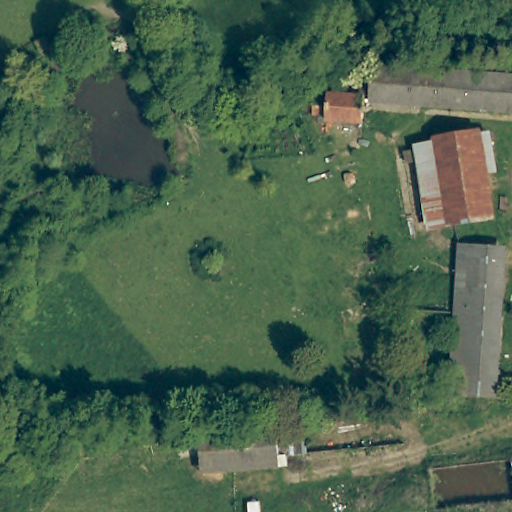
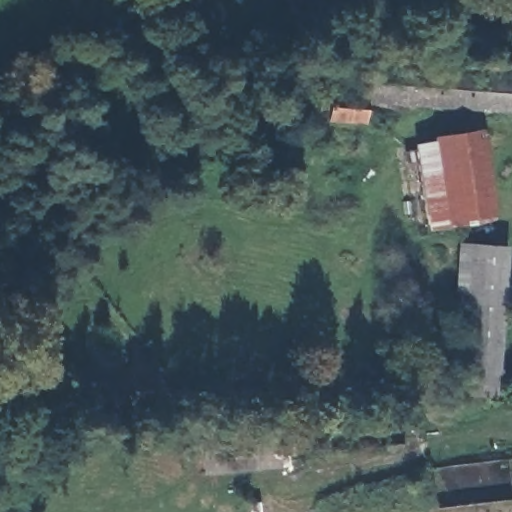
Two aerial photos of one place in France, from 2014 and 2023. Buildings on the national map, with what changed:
unchanged [(385,102),(373,101),(376,65),(383,65),(512,74),(512,111),(385,102)]
unchanged [(335,106),(335,99),(371,101),(369,127),(335,127),(335,121),(322,121),(321,106),(320,105),(335,106)]
unchanged [(432,230),(415,145),(492,130),(496,152),(488,153),(497,219),(432,230)]
unchanged [(506,394),(453,393),(454,373),(457,241),(507,241),(507,365),(506,394)]
unchanged [(204,473),(201,430),(277,422),(278,430),(308,427),(311,454),(282,458),(285,469),(204,473)]

